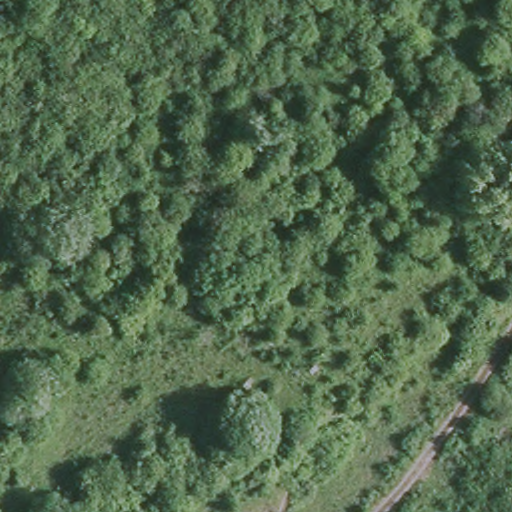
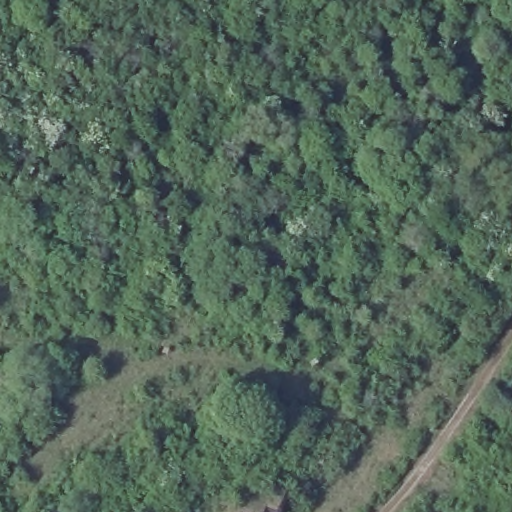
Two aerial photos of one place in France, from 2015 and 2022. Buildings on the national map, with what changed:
unchanged [(293,505),(290,512),(249,512),(258,490),(293,505)]

